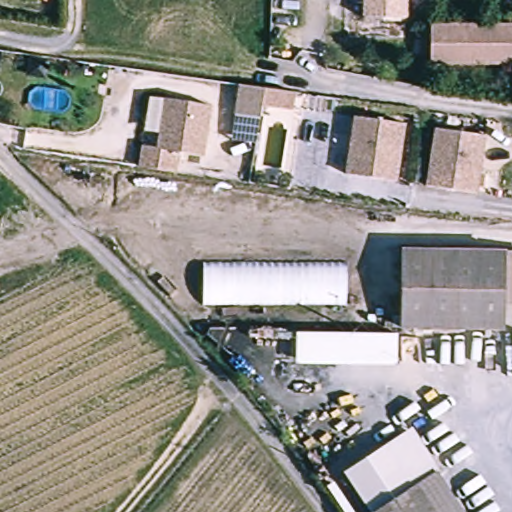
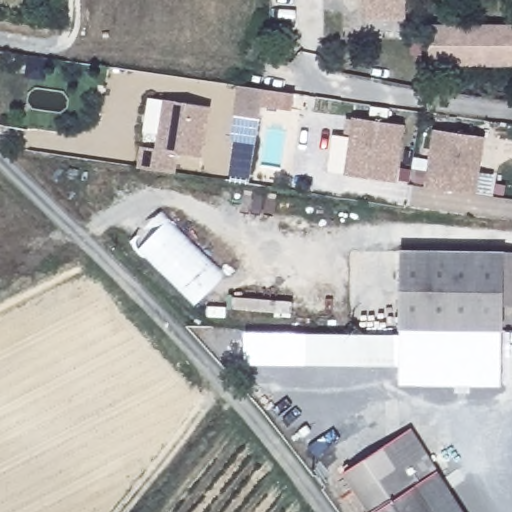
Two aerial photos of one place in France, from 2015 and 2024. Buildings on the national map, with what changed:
new [(379,20),(362,19),(362,0),(379,0),(379,20)]
unchanged [(408,20),(379,20),(379,0),(408,0),(408,20)]
unchanged [(423,62),(428,21),(512,25),(512,65),(423,62)]
unchanged [(291,97),(289,113),(258,108),(256,122),(230,119),(234,88),(260,92),(291,97)]
unchanged [(127,171),(130,150),(143,151),(151,98),(194,104),(186,157),(166,155),(163,177),(127,171)]
unchanged [(409,126),(400,185),(346,176),(354,118),(409,126)]
unchanged [(434,130),(502,138),(489,196),(428,189),(422,188),(430,146),(434,130)]
new [(131,242),(161,211),(226,275),(195,306),(131,242)]
unchanged [(393,328),(393,255),(512,254),(512,307),(502,307),(501,333),(393,328)]
demolished [(345,305),(203,306),(203,266),(345,266),(345,305)]
new [(500,386),(399,385),(400,328),(501,333),(500,386)]
new [(296,363),(246,365),(244,333),(296,335),(296,363)]
unchanged [(394,364),(296,363),(296,335),(393,337),(394,364)]
new [(344,473),(411,428),(427,453),(402,468),(397,460),(353,487),(344,473)]
unchanged [(436,474),(463,512),(430,512),(414,487),(376,512),(370,512),(353,487),(397,460),(402,468),(427,453),(439,471),(436,474)]
unchanged [(430,512),(376,512),(414,487),(430,512)]

